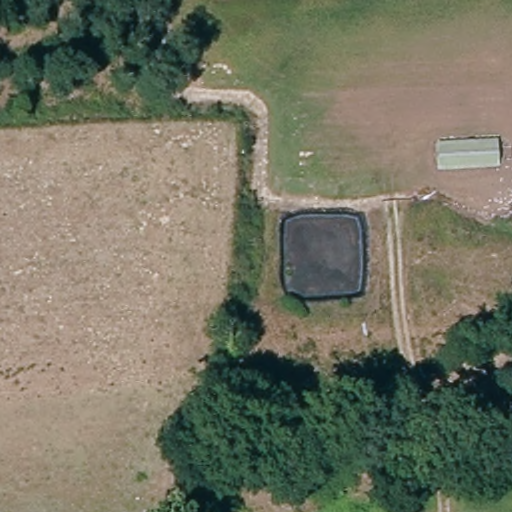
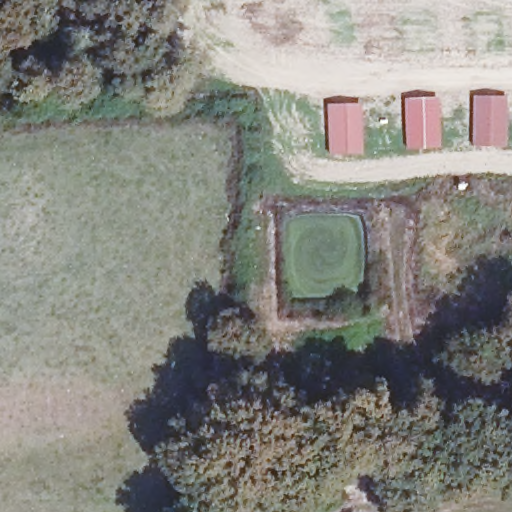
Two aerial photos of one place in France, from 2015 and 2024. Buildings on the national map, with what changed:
new [(472,96),(507,96),(507,147),(471,146),(472,96)]
new [(440,97),(441,148),(405,149),(403,98),(440,97)]
new [(361,103),(363,154),(328,155),(326,104),(361,103)]
demolished [(499,140),(500,166),(439,169),(436,144),(499,140)]

